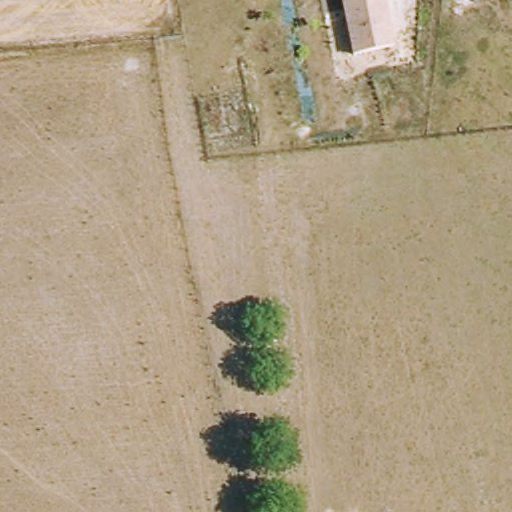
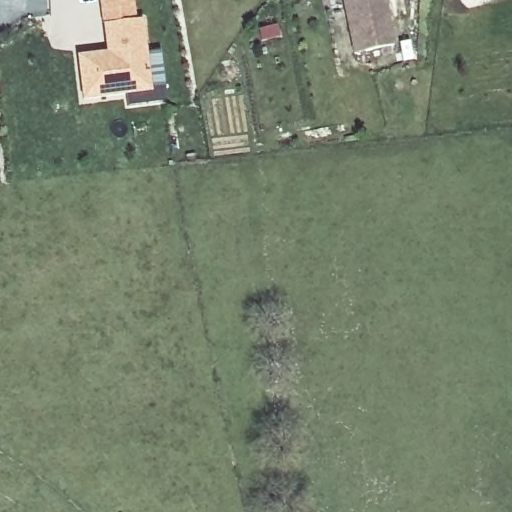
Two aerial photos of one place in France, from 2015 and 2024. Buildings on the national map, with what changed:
unchanged [(355,55),(343,0),(387,0),(396,47),(355,55)]
new [(77,56),(106,52),(103,25),(143,20),(151,91),(82,100),(77,56)]

